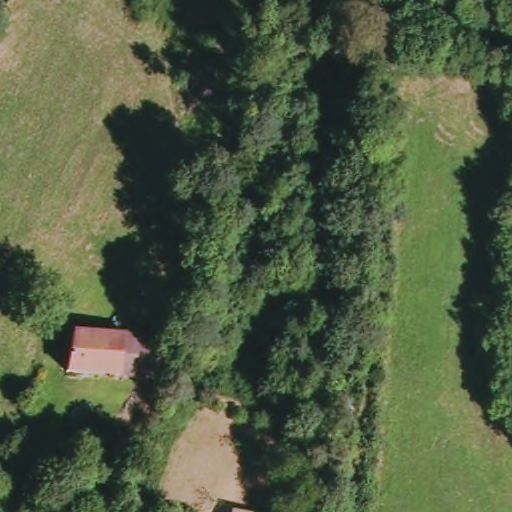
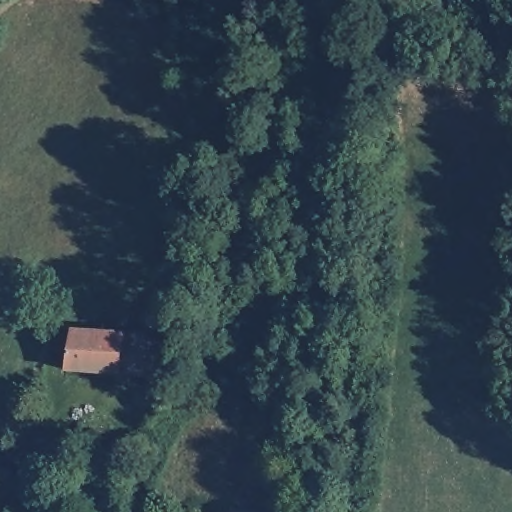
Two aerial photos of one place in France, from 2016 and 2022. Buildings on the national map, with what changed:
unchanged [(164,375),(70,371),(73,330),(127,333),(167,335),(164,375)]

